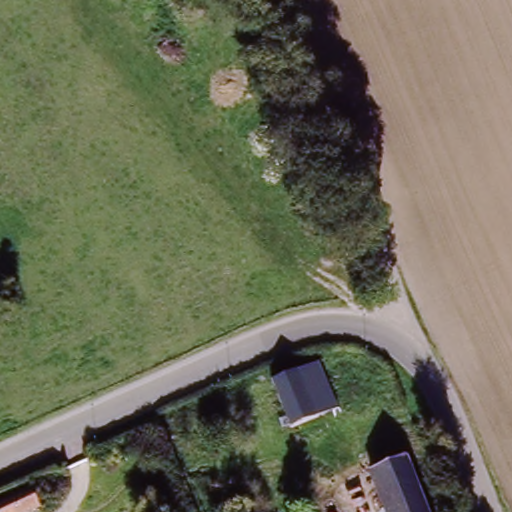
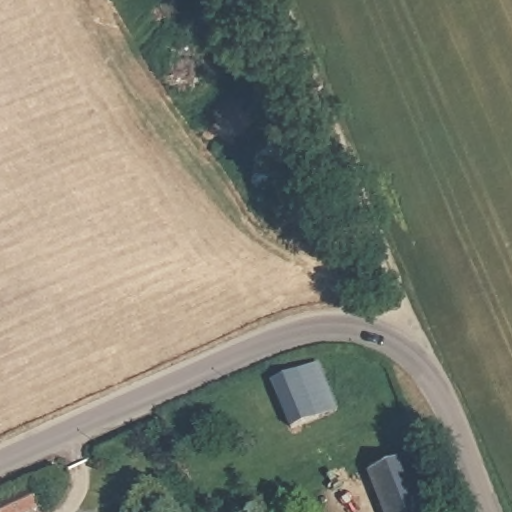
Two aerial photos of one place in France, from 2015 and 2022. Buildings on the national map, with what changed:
unchanged [(292,434),(274,387),(320,369),(339,415),(292,434)]
unchanged [(373,478),(405,464),(424,512),(387,512),(373,478)]
unchanged [(33,496),(39,512),(38,512),(0,512),(0,510),(33,496)]

